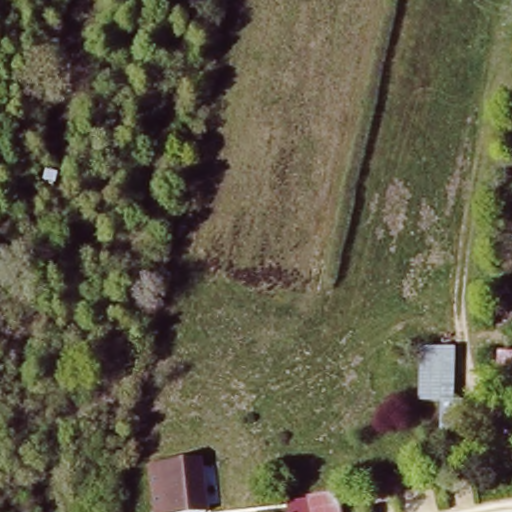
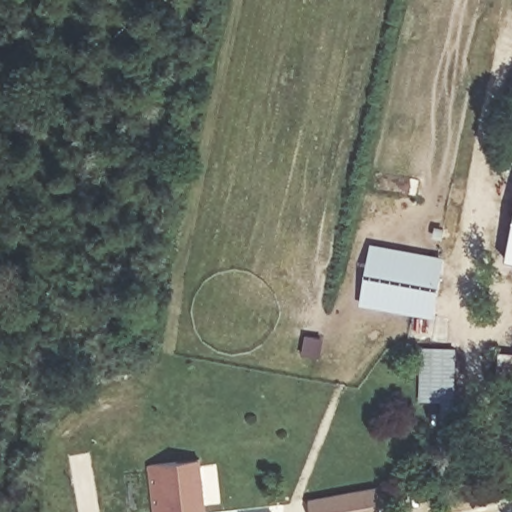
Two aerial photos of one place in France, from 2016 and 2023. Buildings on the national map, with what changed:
new [(505,258),(512,223),(512,260),(505,258)]
new [(434,316),(359,303),(369,242),(443,255),(434,316)]
unchanged [(461,353),(458,408),(419,407),(421,351),(461,353)]
unchanged [(208,457),(215,510),(177,512),(162,512),(154,460),(208,457)]
new [(376,486),(381,512),(343,512),(339,491),(376,486)]
unchanged [(343,512),(307,512),(304,497),(339,491),(343,512)]

